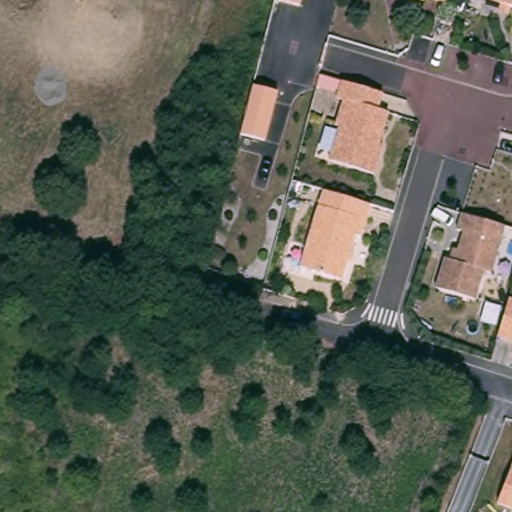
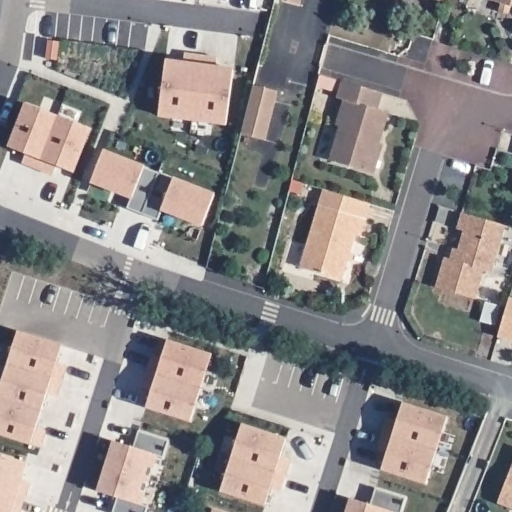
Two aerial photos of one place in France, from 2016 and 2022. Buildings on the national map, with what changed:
unchanged [(281,0),(301,0),(300,5),(281,0)]
unchanged [(448,2),(442,0),(448,0),(448,2)]
unchanged [(491,1),(491,0),(512,0),(512,7),(491,1)]
new [(48,41),(58,42),(56,60),(45,59),(48,41)]
new [(159,115),(166,60),(233,69),(227,124),(159,115)]
unchanged [(394,116),(381,158),(384,159),(378,178),(334,164),(344,131),(339,129),(346,104),(341,102),(346,87),(336,85),(334,90),(324,86),(327,75),(347,81),(389,94),(384,112),(394,116)]
unchanged [(278,92),(266,141),(244,135),(257,87),(278,92)]
new [(25,102),(91,128),(76,171),(9,146),(25,102)]
new [(128,208),(131,199),(91,182),(104,149),(214,193),(201,226),(161,210),(158,219),(128,208)]
unchanged [(322,204),(369,220),(365,236),(359,234),(345,278),(304,265),(322,204)]
unchanged [(512,225),(512,230),(499,272),(491,270),(482,298),(441,286),(450,256),(459,258),(469,227),(465,226),(469,212),(512,225)]
unchanged [(506,335),(512,314),(512,337),(506,335)]
new [(0,387),(18,331),(61,345),(31,445),(0,435),(0,387)]
new [(146,408),(168,339),(211,352),(190,421),(146,408)]
new [(388,417),(398,420),(403,403),(448,417),(437,450),(383,432),(388,417)]
new [(220,491),(242,423),(286,437),(265,505),(220,491)]
new [(146,506),(145,512),(112,512),(116,497),(98,491),(112,441),(134,447),(138,431),(169,442),(164,457),(157,455),(142,505),(146,506)]
new [(383,432),(437,450),(427,482),(382,468),(387,452),(378,448),(383,432)]
new [(11,512),(0,512),(0,454),(26,462),(11,512)]
unchanged [(501,497),(512,470),(512,502),(501,497)]
new [(371,504),(376,487),(405,497),(401,512),(345,512),(350,497),(371,504)]
new [(212,512),(213,508),(224,512),(212,512)]

